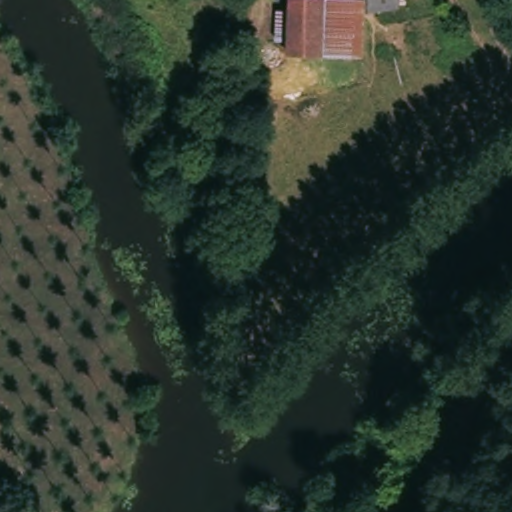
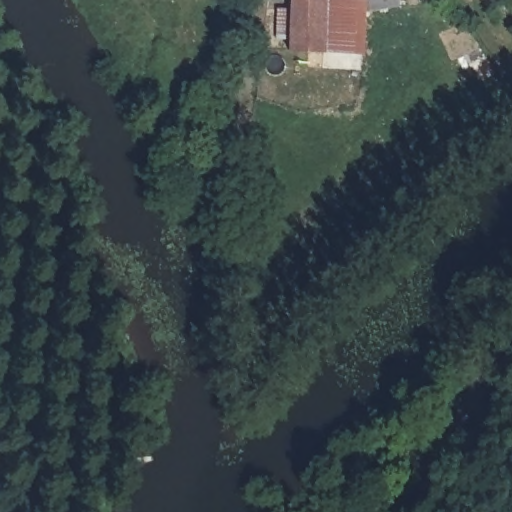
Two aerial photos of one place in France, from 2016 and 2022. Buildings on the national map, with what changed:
unchanged [(295,0),(333,0),(331,49),(295,49),(295,0)]
unchanged [(331,49),(333,0),(357,0),(358,49),(331,49)]
unchanged [(393,461),(398,456),(395,451),(410,435),(414,438),(422,431),(426,437),(399,468),(393,461)]

